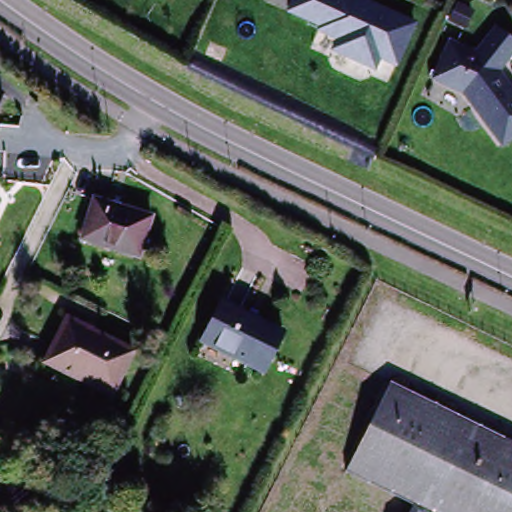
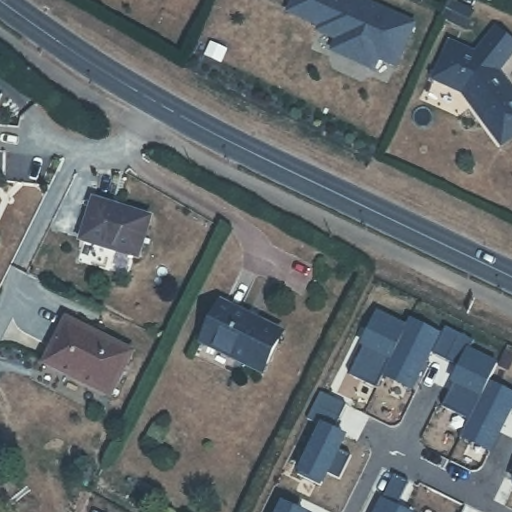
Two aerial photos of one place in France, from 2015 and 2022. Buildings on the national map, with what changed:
unchanged [(399,67),(381,60),(376,73),(330,50),(334,39),(315,30),(317,25),(284,10),(288,0),(365,0),(420,25),(399,67)]
unchanged [(512,91),(512,138),(502,145),(463,92),(434,78),(451,42),(476,54),(496,28),(512,42),(512,54),(498,72),(512,91)]
unchanged [(81,241),(93,201),(150,218),(138,259),(81,241)]
unchanged [(245,367),(247,362),(204,340),(221,304),(281,334),(262,375),(245,367)]
new [(366,345),(364,345),(379,313),(407,327),(412,319),(440,333),(411,390),(384,377),(378,389),(377,389),(350,375),(366,345)]
unchanged [(46,365),(68,321),(132,354),(111,397),(46,365)]
new [(475,343),(470,351),(499,366),(490,384),(512,395),(512,410),(511,409),(489,453),(461,439),(469,421),(443,408),(456,382),(454,382),(461,369),(434,355),(447,328),(475,343)]
demolished [(416,506),(350,474),(393,386),(512,445),(512,512),(413,512),(416,506)]
new [(322,426),(308,419),(315,406),(323,392),(347,403),(341,418),(335,431),(345,436),(339,450),(352,456),(340,480),(327,474),(321,486),(298,475),(322,426)]
new [(395,475),(410,482),(397,508),(404,512),(377,512),(395,475)]
new [(283,503),(300,512),(279,512),(283,503)]

